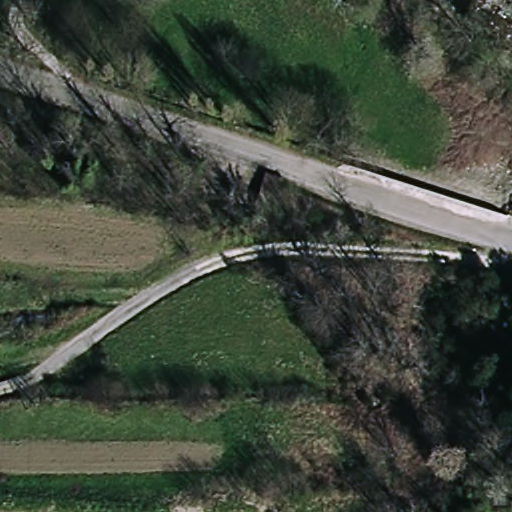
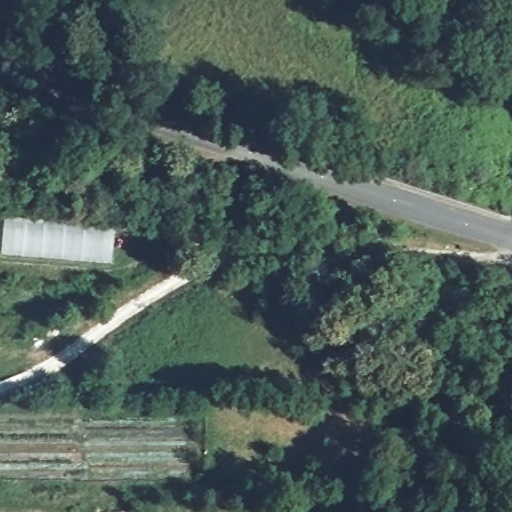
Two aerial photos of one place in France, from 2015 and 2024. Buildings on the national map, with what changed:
unchanged [(250,202),(257,172),(275,178),(267,206),(250,202)]
new [(110,263),(0,254),(3,219),(114,229),(110,263)]

